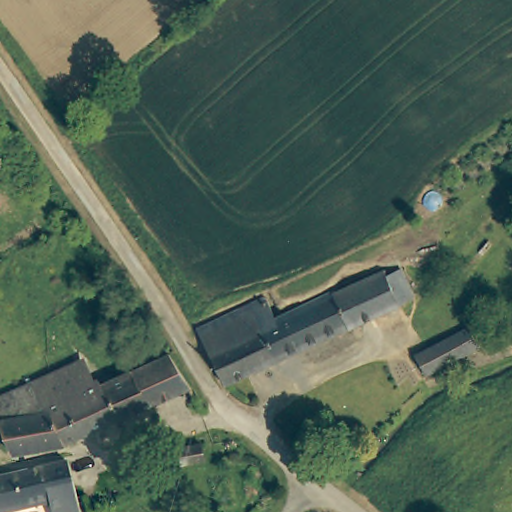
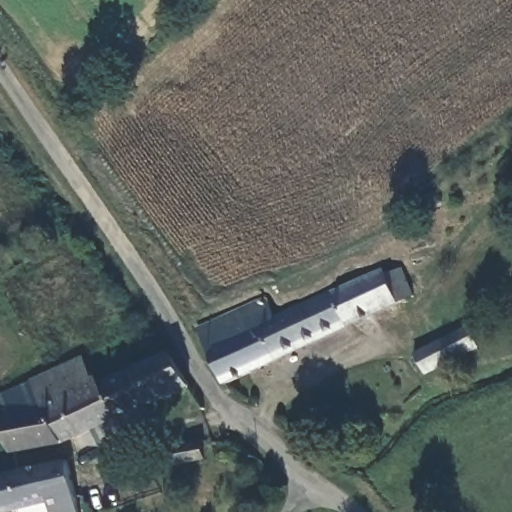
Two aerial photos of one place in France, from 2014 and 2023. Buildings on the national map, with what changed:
unchanged [(416,297),(230,382),(225,384),(199,327),(245,307),(266,298),(276,316),(332,289),(333,289),(342,287),(380,270),(384,268),(386,274),(402,266),(416,297)]
unchanged [(478,349),(427,375),(418,359),(470,332),(478,349)]
unchanged [(69,441),(12,452),(0,423),(0,396),(79,361),(79,362),(87,381),(95,378),(98,384),(166,353),(189,387),(69,441)]
unchanged [(202,455),(204,462),(175,469),(172,462),(168,463),(162,459),(161,455),(162,451),(165,449),(170,449),(175,454),(200,447),(202,455)]
unchanged [(52,512),(50,502),(25,507),(0,511),(0,475),(64,461),(72,512),(70,512),(52,512)]

